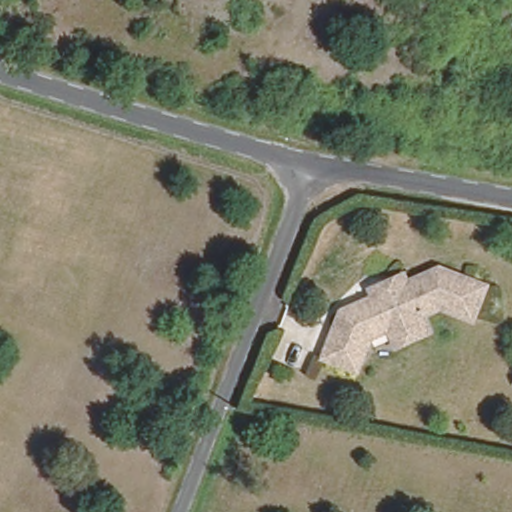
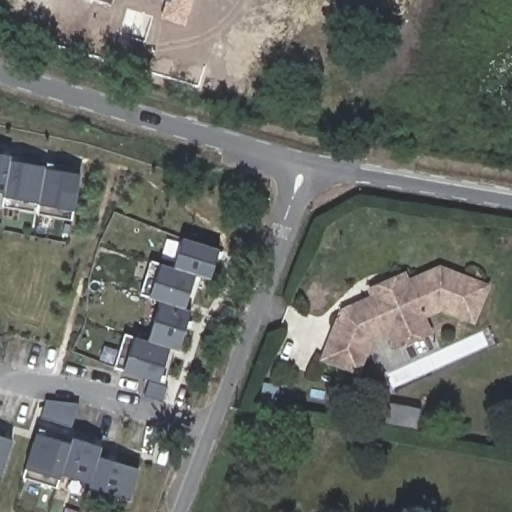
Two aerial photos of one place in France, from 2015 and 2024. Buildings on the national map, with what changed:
new [(101,0),(112,0),(111,3),(101,0)]
new [(159,17),(165,0),(194,0),(186,26),(159,17)]
new [(0,193),(0,153),(10,155),(9,160),(20,162),(44,166),(44,167),(61,171),(80,174),(74,212),(72,221),(36,215),(36,213),(1,207),(2,197),(3,194),(0,193)]
new [(138,295),(148,260),(159,263),(172,267),(176,254),(181,237),(219,249),(214,265),(210,278),(195,274),(190,292),(185,309),(191,311),(185,330),(179,351),(169,347),(163,367),(158,382),(122,371),(112,368),(122,333),(133,337),(147,341),(153,320),(159,301),(149,298),(138,295)]
unchanged [(318,344),(330,312),(342,315),(365,305),(362,297),(358,289),(402,270),(405,277),(409,286),(434,274),(437,265),(484,281),(473,318),(440,307),(421,315),(425,322),(428,331),(394,345),(391,337),(387,330),(369,337),(374,347),(355,356),(350,371),(313,359),(318,344)]
new [(162,402),(143,397),(148,381),(166,387),(162,402)]
new [(71,427),(39,418),(45,399),(79,403),(71,427)]
new [(60,475),(59,480),(56,489),(20,478),(23,469),(35,432),(60,440),(70,443),(72,437),(84,441),(101,447),(98,457),(111,461),(139,469),(129,500),(102,492),(88,487),(89,483),(72,478),(60,475)]
new [(1,477),(0,476),(0,435),(12,440),(1,477)]

